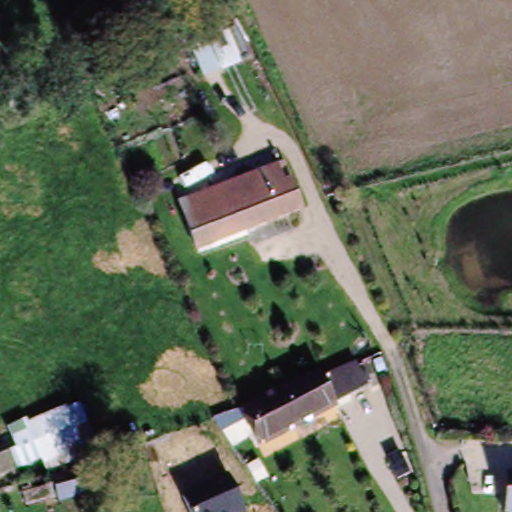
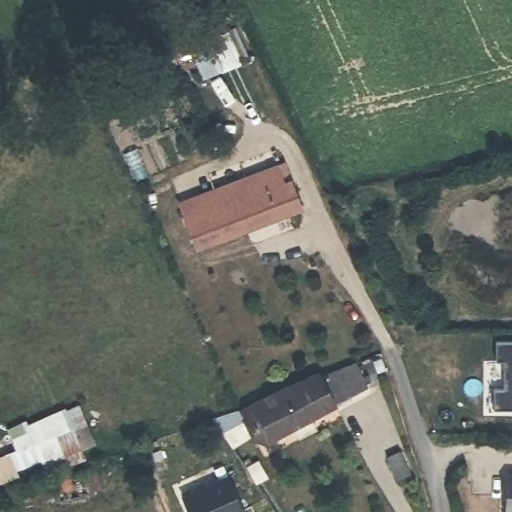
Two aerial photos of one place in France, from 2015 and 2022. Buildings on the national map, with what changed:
unchanged [(310,209),(205,247),(196,222),(177,202),(269,167),(286,160),(295,184),(300,182),(310,209)]
new [(502,389),(504,361),(495,361),(496,340),(512,341),(512,410),(491,409),(492,388),(502,389)]
unchanged [(276,397),(282,408),(359,369),(369,388),(335,405),(265,441),(254,419),(226,432),(216,416),(222,414),(249,410),(276,397)]
unchanged [(102,442),(2,482),(0,479),(0,458),(35,443),(29,426),(87,404),(102,442)]
unchanged [(84,471),(90,488),(56,498),(51,481),(84,471)]
unchanged [(188,512),(182,496),(227,476),(244,512),(188,512)]
unchanged [(43,488),(45,498),(17,505),(15,496),(43,488)]
unchanged [(512,512),(510,512),(512,488),(512,512)]

